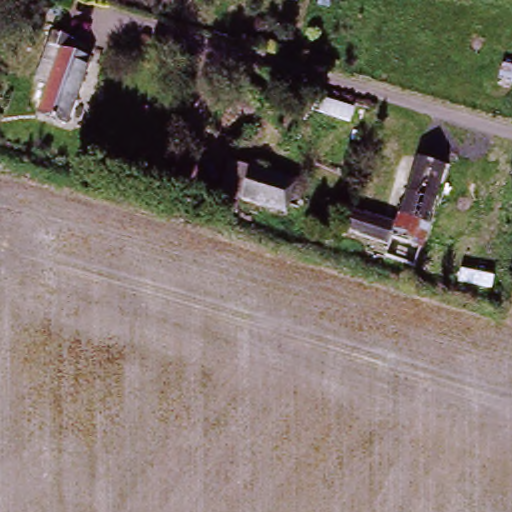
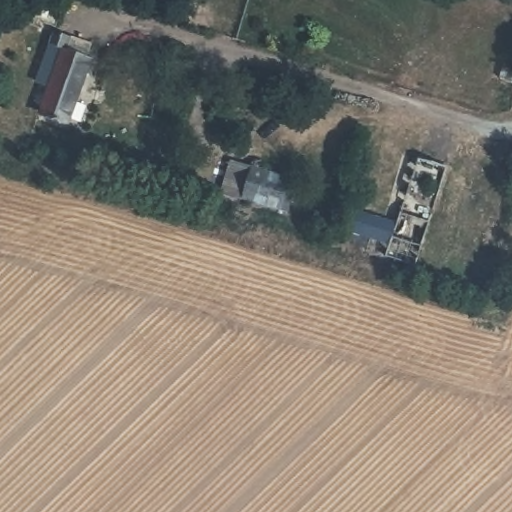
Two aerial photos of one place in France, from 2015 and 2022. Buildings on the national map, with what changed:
unchanged [(55,33),(91,43),(68,122),(32,112),(40,89),(21,84),(31,49),(50,54),(55,33)]
unchanged [(406,151),(445,160),(416,258),(380,250),(406,151)]
unchanged [(211,186),(218,157),(296,179),(288,209),(211,186)]

